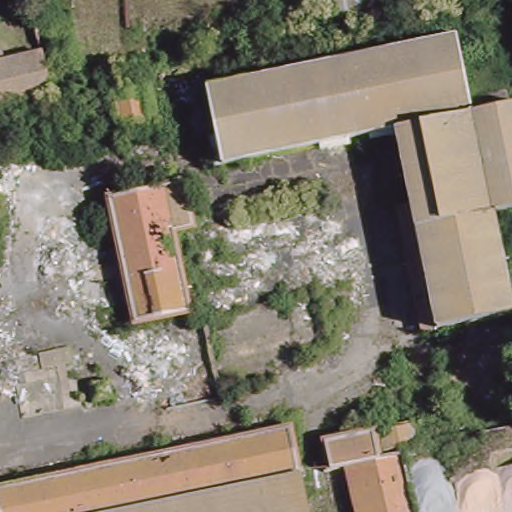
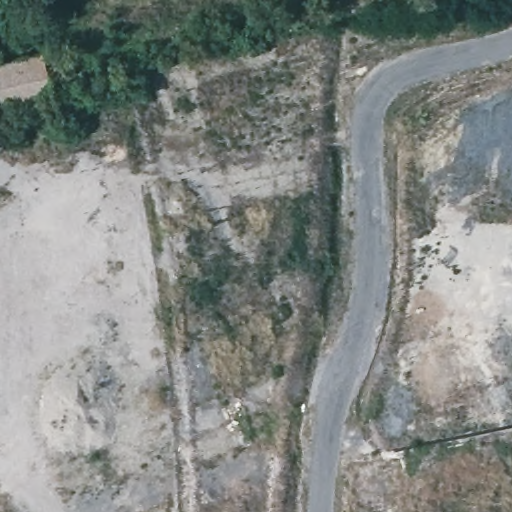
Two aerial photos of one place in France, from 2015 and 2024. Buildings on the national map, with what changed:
demolished [(512,313),(447,326),(436,272),(424,275),(394,127),(219,163),(204,87),(455,37),(471,112),(512,104),(512,210),(492,214),(512,313)]
unchanged [(70,92),(0,109),(0,62),(48,51),(50,63),(64,60),(70,92)]
demolished [(147,117),(119,122),(114,96),(141,91),(147,117)]
demolished [(188,311),(133,323),(109,197),(182,183),(191,226),(183,228),(186,243),(175,245),(188,311)]
demolished [(422,445),(391,452),(387,430),(419,424),(422,445)]
demolished [(360,512),(350,468),(333,471),(325,436),(375,426),(381,458),(405,453),(417,512),(360,512)]
demolished [(289,427),(298,472),(271,478),(278,512),(0,512),(0,488),(289,427)]

